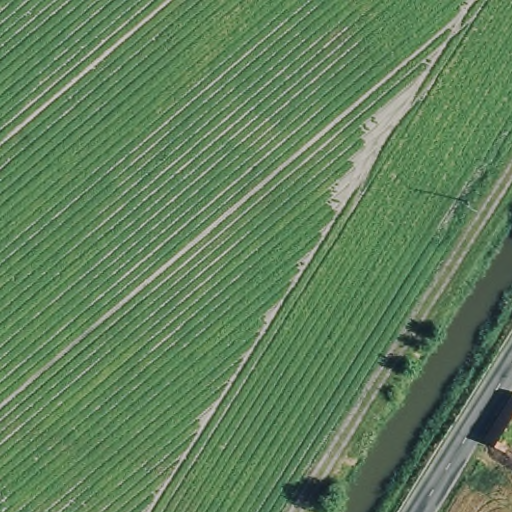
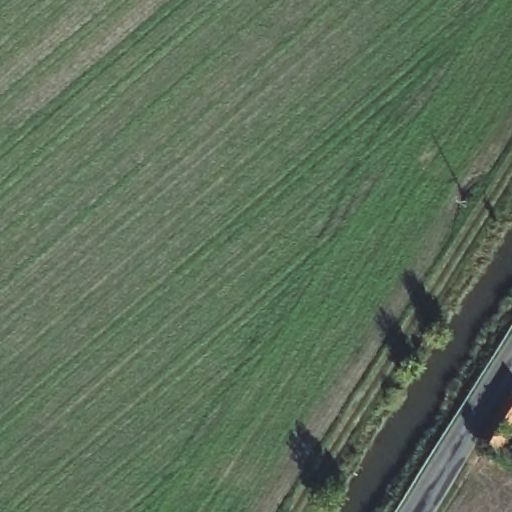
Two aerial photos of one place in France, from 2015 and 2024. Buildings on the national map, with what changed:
unchanged [(499,450),(487,443),(482,440),(510,395),(512,396),(512,428),(499,450)]

